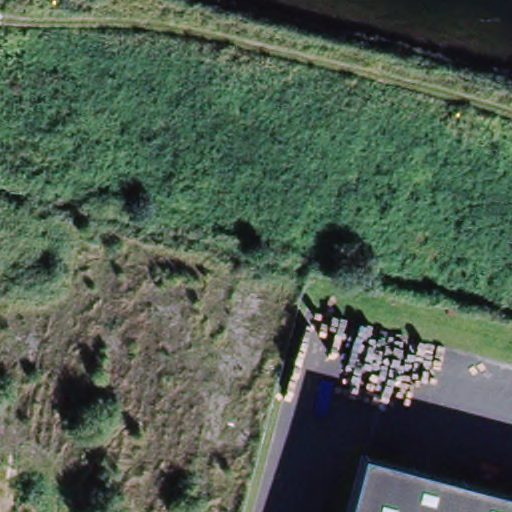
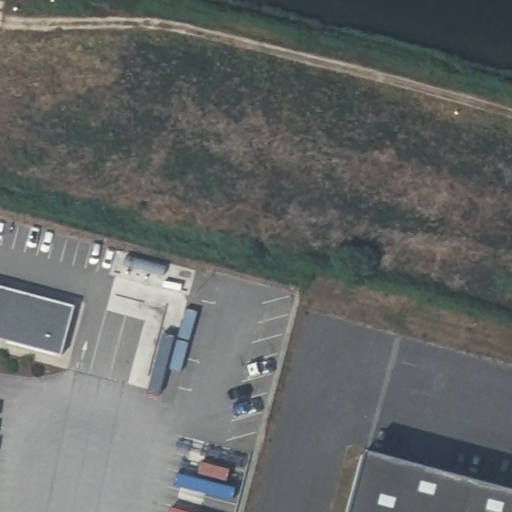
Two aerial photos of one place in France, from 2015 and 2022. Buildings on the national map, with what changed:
new [(77,300),(63,349),(0,332),(0,278),(77,300)]
unchanged [(512,512),(349,512),(364,453),(512,492),(512,512)]

